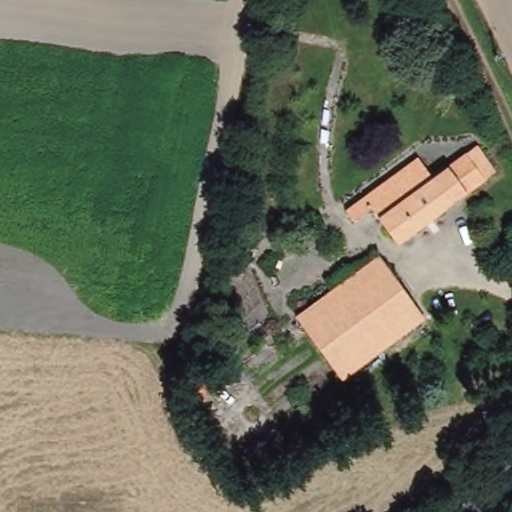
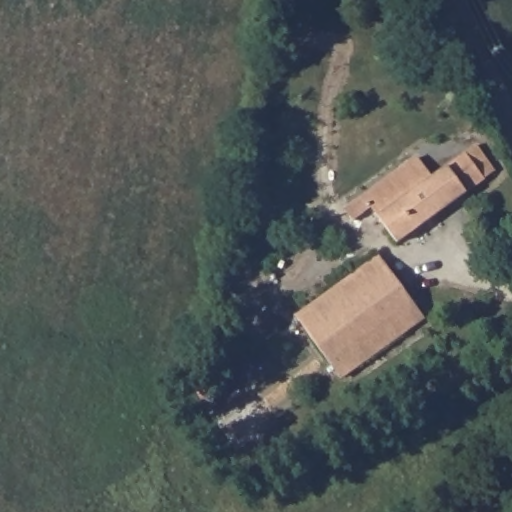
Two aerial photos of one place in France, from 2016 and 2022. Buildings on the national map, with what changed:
unchanged [(433,177),(478,144),(498,174),(398,244),(373,209),(355,223),(347,212),(420,158),(433,177)]
unchanged [(255,244),(254,263),(235,260),(237,242),(255,244)]
unchanged [(407,295),(425,322),(344,380),(299,316),(381,258),(407,295)]

